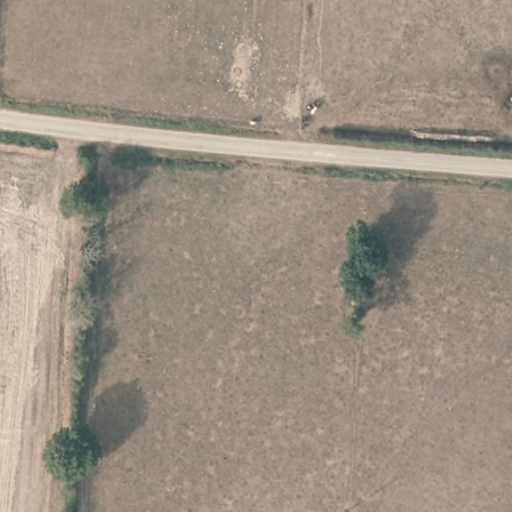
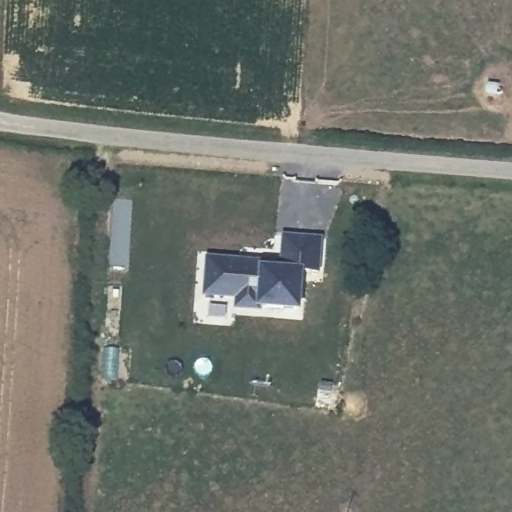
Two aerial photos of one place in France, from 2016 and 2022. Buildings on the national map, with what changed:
new [(320,272),(303,270),(300,309),(259,307),(259,310),(234,308),(234,298),(203,294),(204,254),(278,259),(280,232),(323,236),(320,272)]

